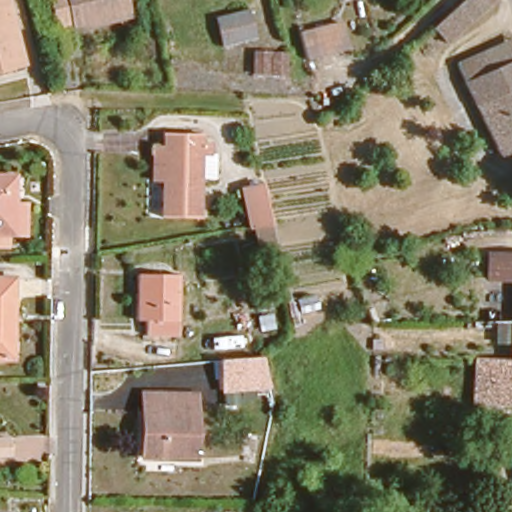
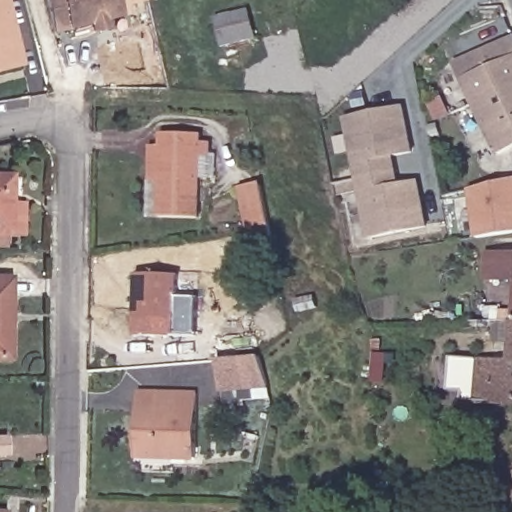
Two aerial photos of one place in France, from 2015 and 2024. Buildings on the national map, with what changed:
unchanged [(0,66),(0,0),(4,0),(19,62),(0,66)]
unchanged [(52,37),(43,0),(119,0),(124,22),(52,37)]
demolished [(488,0),(489,1),(468,18),(455,4),(459,0),(488,0)]
unchanged [(247,44),(215,45),(214,17),(245,15),(247,44)]
unchanged [(332,49),(309,54),(303,30),(327,25),(332,49)]
unchanged [(455,62),(512,39),(512,87),(474,103),(455,62)]
unchanged [(285,75),(254,72),(254,54),(287,55),(285,75)]
unchanged [(497,155),(493,146),(483,149),(478,139),(488,135),(474,103),(512,87),(512,148),(497,155)]
new [(414,154),(394,158),(399,184),(419,180),(429,229),(367,241),(343,117),(404,106),(414,154)]
unchanged [(164,219),(169,131),(202,132),(201,146),(216,146),(217,178),(200,178),(199,220),(164,219)]
unchanged [(0,236),(0,178),(13,178),(11,237),(0,236)]
new [(466,187),(512,181),(512,233),(474,239),(466,187)]
unchanged [(255,254),(252,225),(245,226),(240,185),(261,182),(268,222),(272,252),(255,254)]
unchanged [(503,360),(504,321),(504,287),(479,286),(479,256),(512,257),(512,360),(503,360)]
unchanged [(130,313),(132,271),(177,273),(173,333),(142,332),(142,313),(130,313)]
unchanged [(0,279),(1,280),(0,357),(0,279)]
unchanged [(260,357),(269,388),(220,393),(218,361),(260,357)]
unchanged [(503,360),(512,360),(512,407),(508,407),(482,406),(482,360),(503,360)]
unchanged [(136,431),(142,431),(144,406),(154,407),(155,388),(192,390),(188,467),(129,464),(129,452),(135,452),(136,431)]
unchanged [(5,453),(0,453),(0,440),(5,440),(5,453)]
unchanged [(510,450),(512,449),(512,456),(510,450)]
unchanged [(489,487),(477,491),(473,476),(484,472),(489,487)]
unchanged [(509,473),(512,472),(512,482),(509,473)]
unchanged [(508,492),(504,485),(512,482),(512,492),(508,492)]
unchanged [(0,510),(3,510),(3,512),(0,512),(0,510)]

